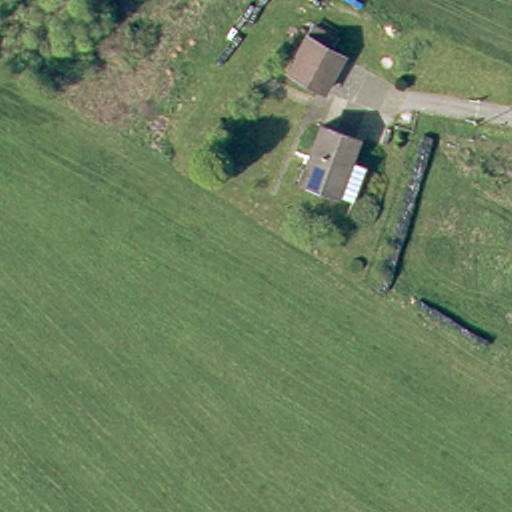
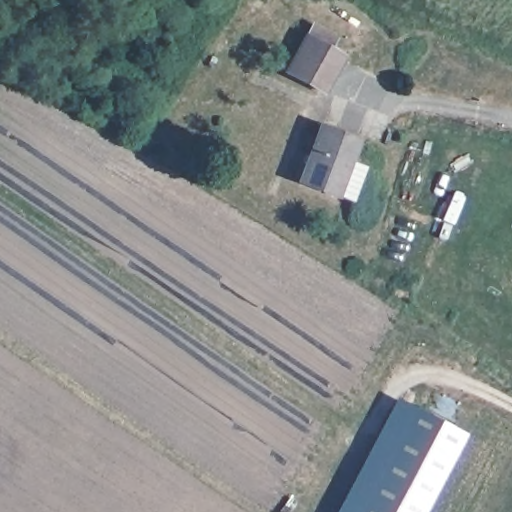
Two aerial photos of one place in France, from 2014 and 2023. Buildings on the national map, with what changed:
unchanged [(337,37),(331,50),(343,56),(324,91),(289,72),(314,25),(337,37)]
unchanged [(353,129),(345,151),(361,156),(349,192),(332,186),(331,187),(296,172),(316,116),(353,129)]
new [(421,512),(334,512),(395,397),(464,432),(421,512)]

